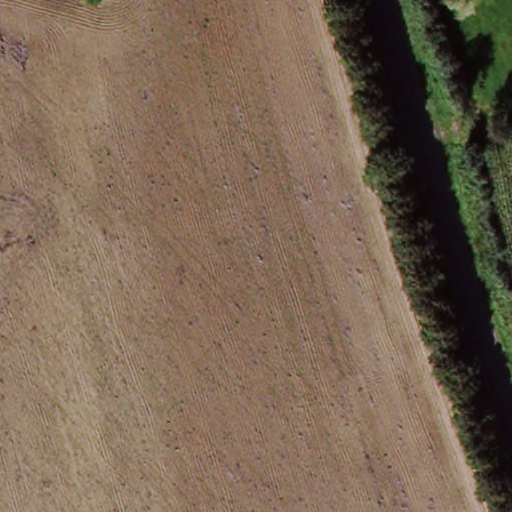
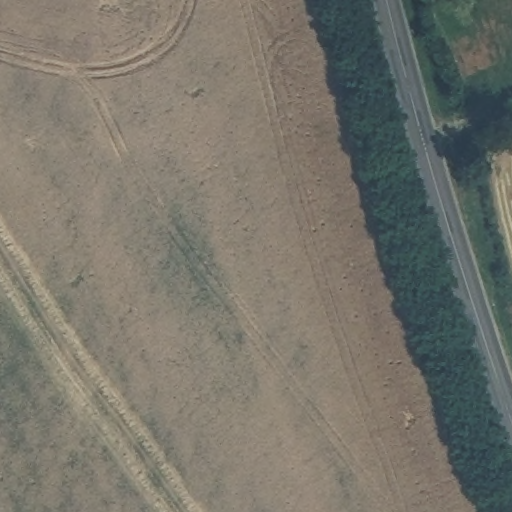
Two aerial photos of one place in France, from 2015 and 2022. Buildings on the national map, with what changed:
[]

